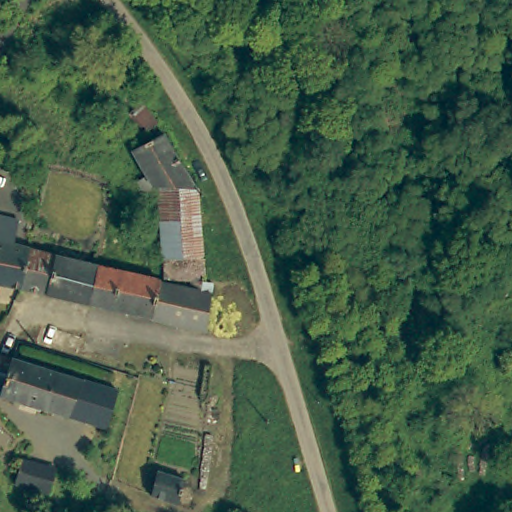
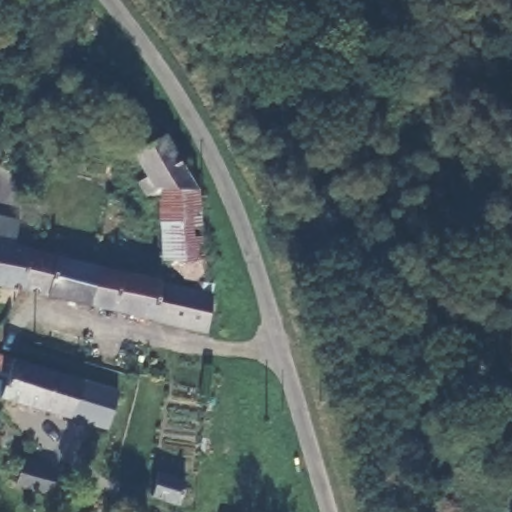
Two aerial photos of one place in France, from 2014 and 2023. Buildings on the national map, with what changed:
unchanged [(149,119),(155,114),(175,136),(154,153),(115,109),(128,96),(149,119)]
unchanged [(177,261),(177,209),(169,214),(157,195),(164,190),(148,166),(178,146),(182,150),(217,207),(218,232),(216,260),(216,277),(177,278),(177,261)]
unchanged [(22,249),(1,244),(0,244),(0,219),(27,224),(23,242),(22,249)]
unchanged [(1,244),(22,249),(37,252),(27,292),(0,286),(0,244),(1,244)]
unchanged [(65,258),(57,298),(27,292),(37,252),(65,258)]
unchanged [(106,267),(98,307),(57,298),(65,258),(106,267)]
unchanged [(167,280),(159,320),(98,307),(106,267),(167,280)]
unchanged [(167,280),(221,292),(217,332),(159,320),(167,280)]
unchanged [(114,431),(0,396),(0,361),(1,356),(18,362),(124,393),(114,431)]
unchanged [(196,507),(172,500),(159,496),(147,492),(157,468),(185,475),(185,478),(194,482),(201,493),(201,497),(196,507)]

